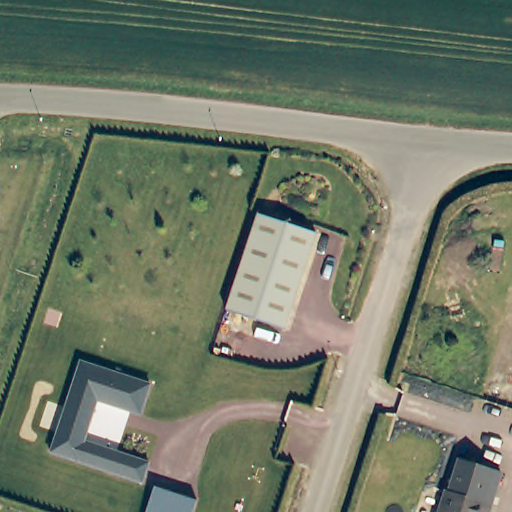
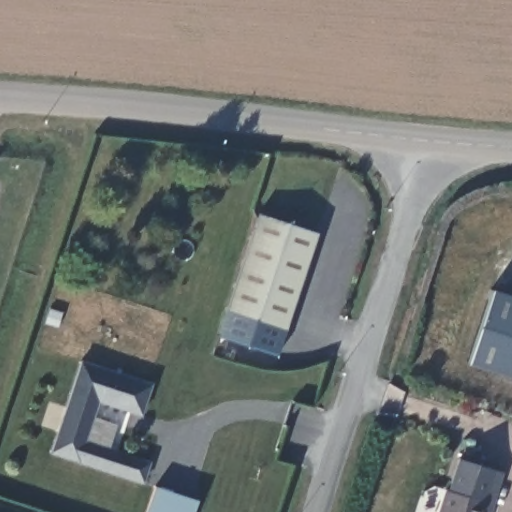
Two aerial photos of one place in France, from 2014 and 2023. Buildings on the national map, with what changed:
unchanged [(260,216),(319,235),(288,332),(229,313),(260,216)]
new [(466,364),(491,291),(512,297),(512,378),(466,364)]
unchanged [(54,454),(83,364),(153,388),(143,417),(100,404),(87,444),(151,465),(145,485),(54,454)]
unchanged [(451,490),(462,458),(502,471),(489,512),(442,512),(449,489),(451,490)]
unchanged [(198,501),(194,512),(147,512),(154,487),(198,501)]

